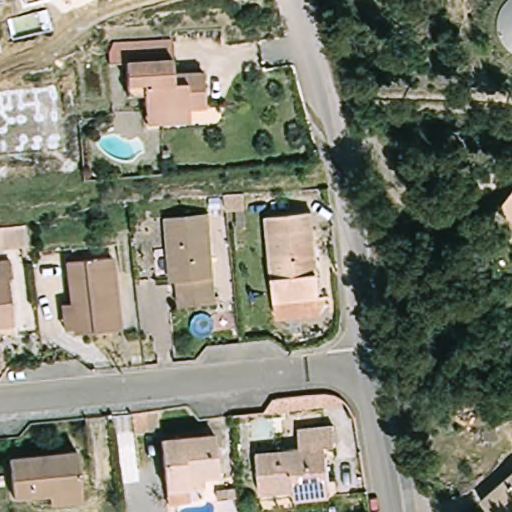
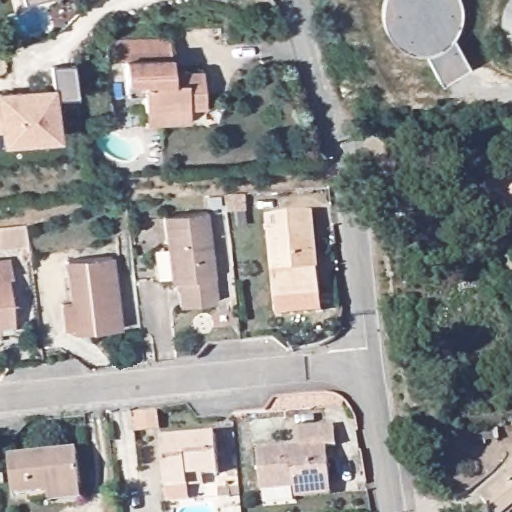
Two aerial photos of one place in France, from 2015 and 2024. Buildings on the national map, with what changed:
unchanged [(151,122),(150,109),(149,94),(133,95),(132,76),(131,62),(114,62),(113,50),(116,44),(175,40),(177,74),(208,72),(209,105),(193,106),(194,120),(151,122)]
new [(50,65),(72,64),(75,96),(54,97),(58,137),(0,142),(0,91),(52,86),(50,65)]
unchanged [(243,193),(244,209),(228,210),(226,194),(243,193)]
unchanged [(512,195),(512,206),(507,202),(512,195)]
unchanged [(316,212),(326,310),(282,315),(271,217),(316,212)]
unchanged [(208,214),(217,301),(179,305),(177,281),(172,282),(165,219),(208,214)]
unchanged [(25,226),(27,246),(0,249),(0,228),(25,226)]
unchanged [(67,305),(76,303),(72,262),(118,258),(125,328),(79,333),(78,329),(69,330),(67,305)]
unchanged [(0,335),(0,263),(16,262),(17,278),(13,278),(18,325),(3,325),(4,335),(0,335)]
unchanged [(319,393),(324,393),(329,393),(334,395),(339,397),(343,400),(347,403),(265,412),(265,411),(276,397),(319,393)]
unchanged [(156,409),(158,426),(132,429),(131,411),(156,409)]
unchanged [(300,500),(299,490),(266,493),(262,452),(305,448),(303,428),(339,425),(341,446),(331,447),(334,482),(336,496),(300,500)]
unchanged [(171,501),(170,488),(165,440),(219,434),(223,473),(207,475),(208,485),(193,486),(194,498),(171,501)]
unchanged [(82,451),(87,500),(53,503),(53,495),(18,498),(14,457),(82,451)]
unchanged [(487,500),(512,479),(512,512),(496,512),(487,500)]

